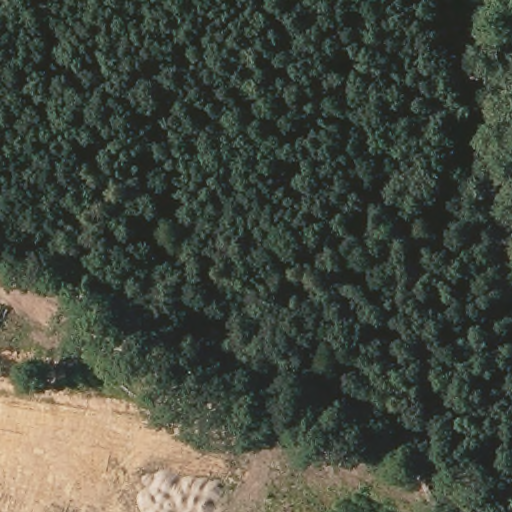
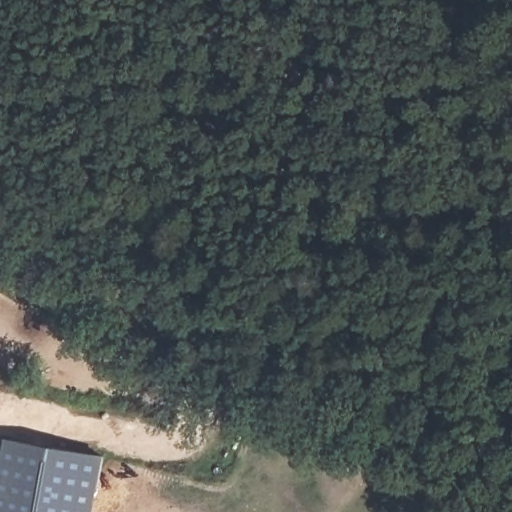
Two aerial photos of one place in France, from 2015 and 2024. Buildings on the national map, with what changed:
new [(105,456),(95,512),(0,512),(0,497),(10,440),(105,456)]

